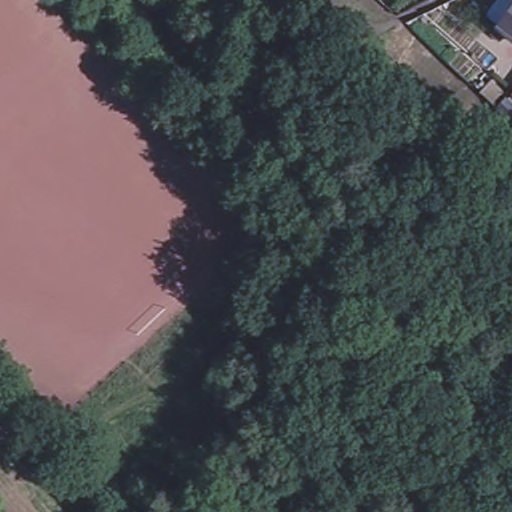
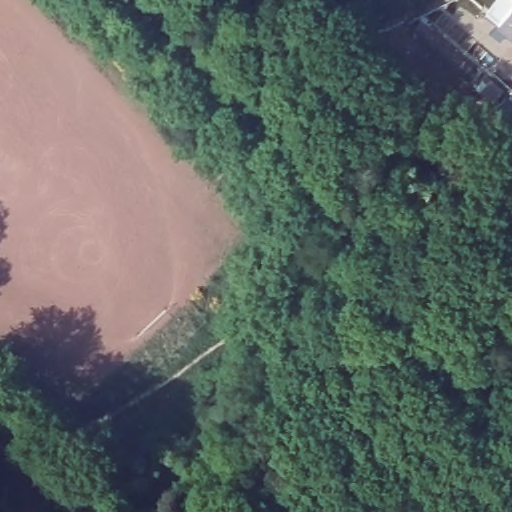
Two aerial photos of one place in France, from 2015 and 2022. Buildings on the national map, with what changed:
unchanged [(497,24),(512,5),(512,36),(497,24)]
unchanged [(505,115),(512,105),(512,122),(505,115)]

